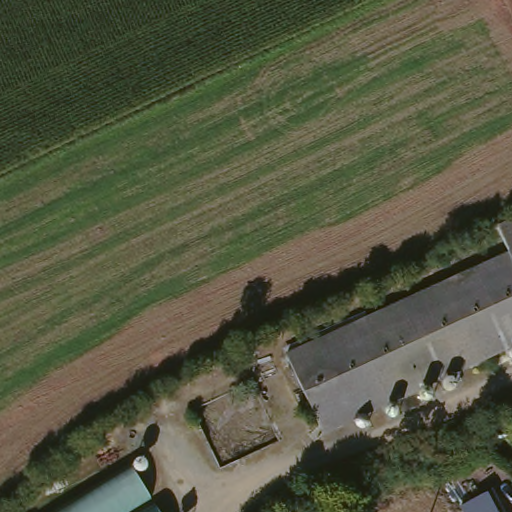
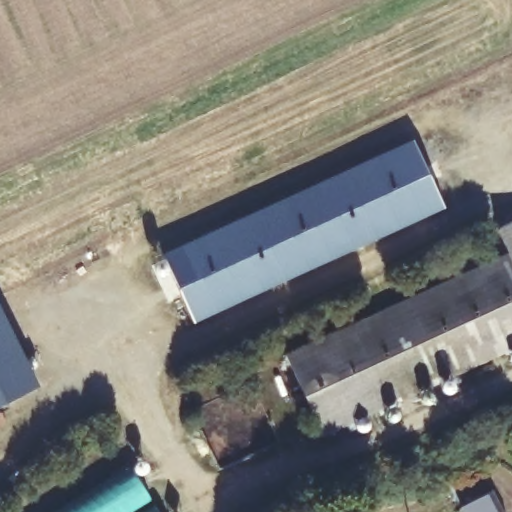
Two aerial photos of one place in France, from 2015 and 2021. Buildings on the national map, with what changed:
new [(415,139),(445,205),(195,318),(165,252),(415,139)]
unchanged [(496,228),(512,221),(512,262),(506,249),(496,228)]
unchanged [(501,248),(512,271),(512,344),(317,434),(277,353),(501,248)]
new [(42,386),(0,406),(0,304),(1,303),(42,386)]
unchanged [(155,494),(127,512),(43,512),(132,456),(155,494)]
unchanged [(493,486),(506,512),(464,512),(459,503),(493,486)]
unchanged [(165,512),(137,512),(157,499),(165,512)]

